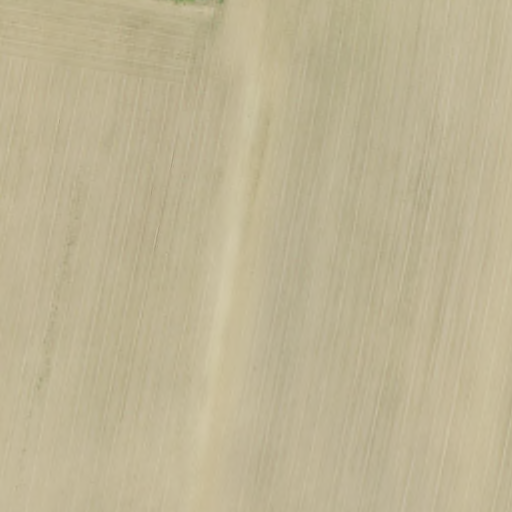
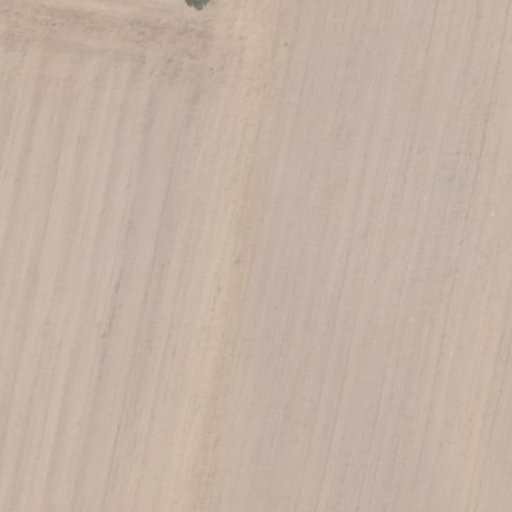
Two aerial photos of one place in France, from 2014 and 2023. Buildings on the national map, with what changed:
[]

